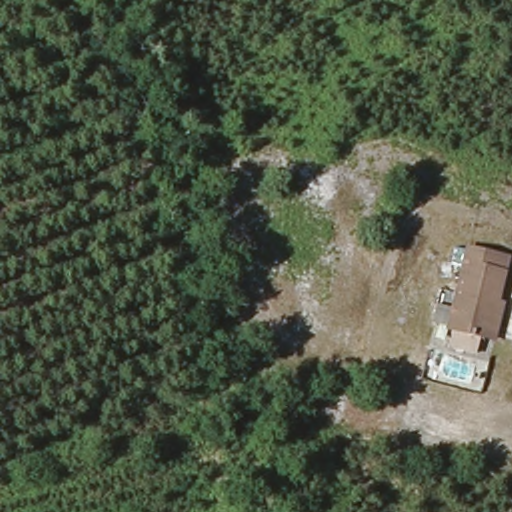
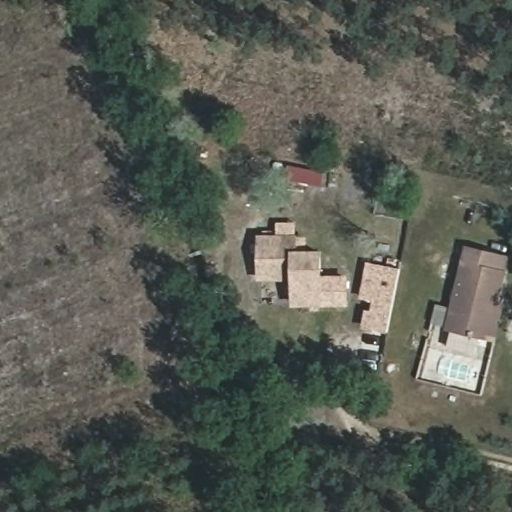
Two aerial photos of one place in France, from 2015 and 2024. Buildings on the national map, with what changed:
new [(291,306),(291,281),(258,280),(256,235),(297,235),(298,251),(321,250),(323,305),(291,306)]
unchanged [(496,342),(487,340),(448,330),(468,252),(507,261),(497,301),(505,304),(496,342)]
new [(400,269),(386,332),(360,330),(363,310),(371,311),(371,301),(359,298),(367,262),(400,269)]

